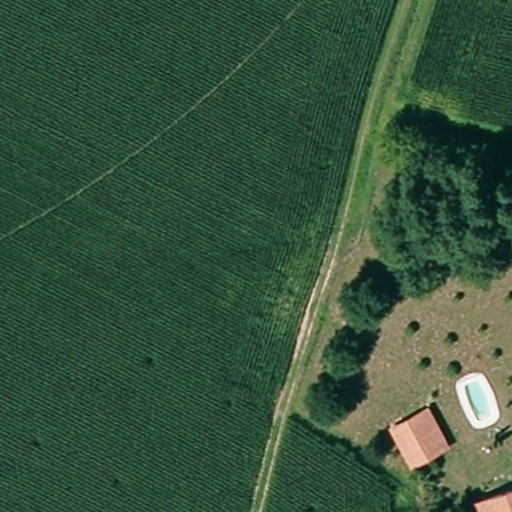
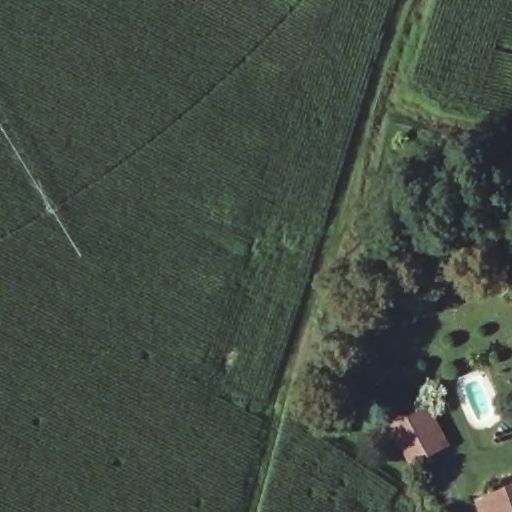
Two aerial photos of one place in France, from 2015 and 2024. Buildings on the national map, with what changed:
unchanged [(411,460),(395,427),(428,413),(443,445),(411,460)]
unchanged [(503,493),(507,487),(512,490),(512,512),(485,512),(480,501),(503,493)]

